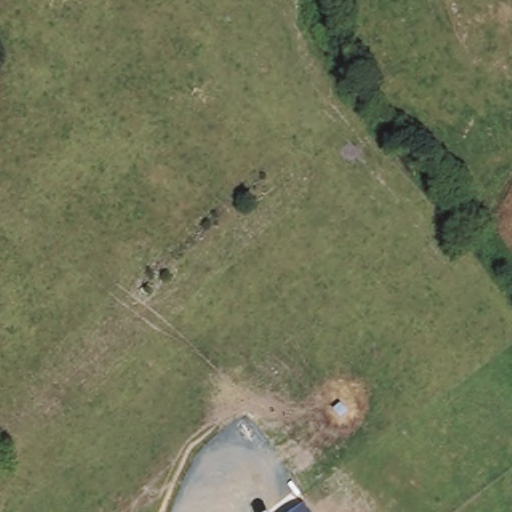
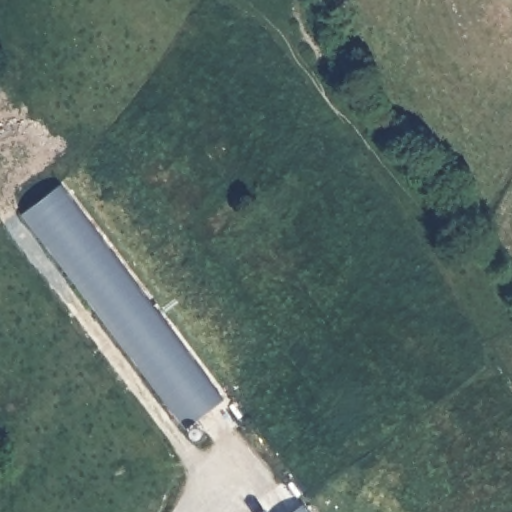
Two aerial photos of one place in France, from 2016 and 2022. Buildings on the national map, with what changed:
new [(187,425),(23,211),(63,182),(225,397),(187,425)]
unchanged [(308,512),(293,512),(303,505),(308,512)]

